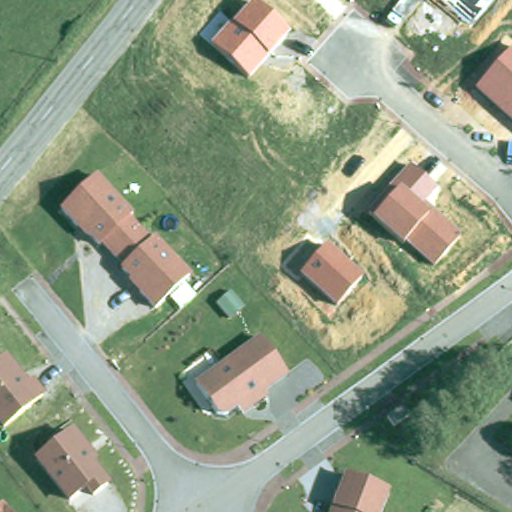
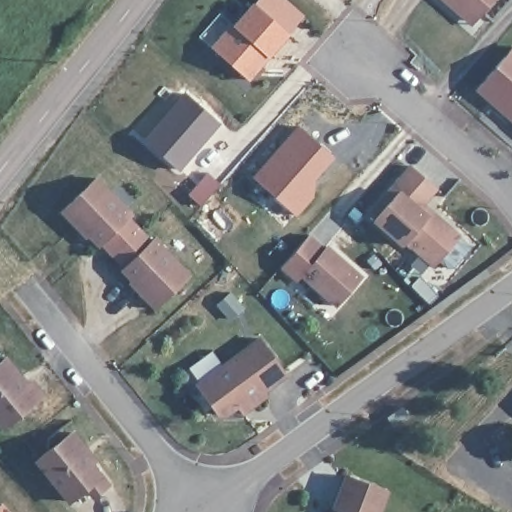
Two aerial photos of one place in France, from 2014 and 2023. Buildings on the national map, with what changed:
new [(288,34),(253,6),(258,0),(288,0),(306,15),(288,34)]
unchanged [(441,0),(494,0),(472,26),(441,0)]
unchanged [(288,34),(247,82),(210,47),(249,2),(288,34)]
unchanged [(472,90),(512,47),(512,125),(472,90)]
new [(183,92),(220,124),(179,170),(143,139),(183,92)]
new [(298,124),(335,158),(315,180),(314,196),(297,215),(253,176),(298,124)]
unchanged [(392,197),(385,191),(407,165),(435,189),(422,205),(462,238),(432,272),(371,220),(392,197)]
unchanged [(137,208),(128,221),(148,242),(153,237),(190,275),(157,310),(117,273),(122,268),(98,247),(90,252),(60,219),(95,182),(137,208)]
unchanged [(365,278),(335,310),(297,276),(327,244),(365,278)]
unchanged [(227,409),(215,418),(207,417),(185,389),(247,341),(274,377),(252,394),(255,398),(240,409),(232,416),(227,409)]
unchanged [(0,428),(0,379),(1,381),(12,393),(17,390),(28,403),(0,428)]
unchanged [(387,427),(381,418),(396,407),(402,416),(387,427)]
unchanged [(85,502),(77,494),(60,508),(25,469),(60,439),(72,452),(83,467),(80,470),(98,491),(85,502)]
unchanged [(374,512),(328,512),(339,482),(380,499),(374,512)]
unchanged [(0,508),(1,507),(6,512),(0,512),(0,508)]

